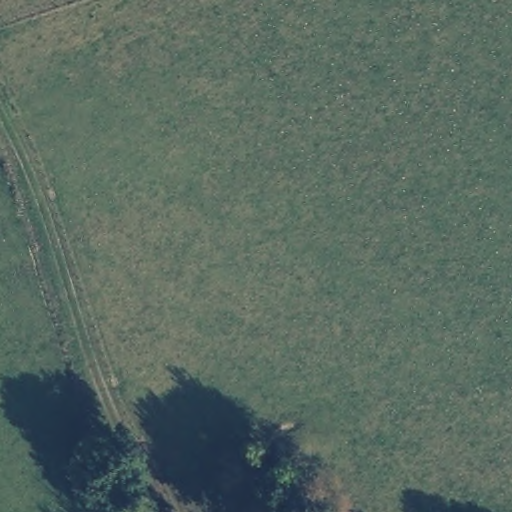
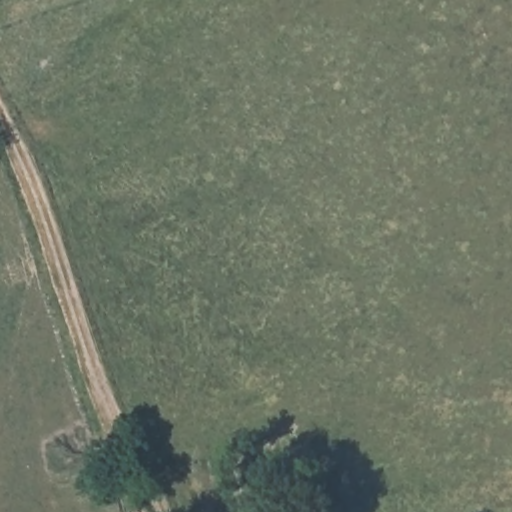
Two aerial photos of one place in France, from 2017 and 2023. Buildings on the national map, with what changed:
unchanged [(218,446),(260,430),(297,512),(249,512),(218,446)]

